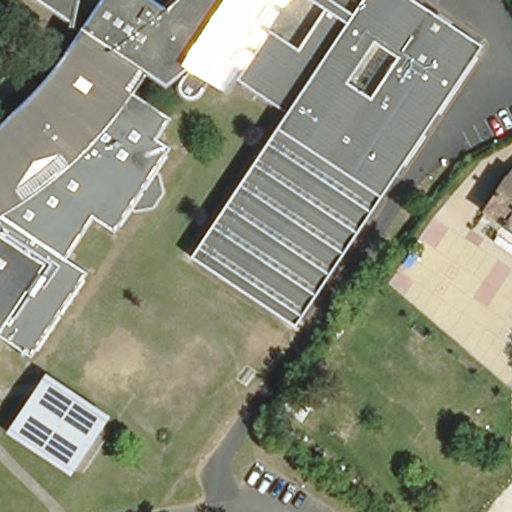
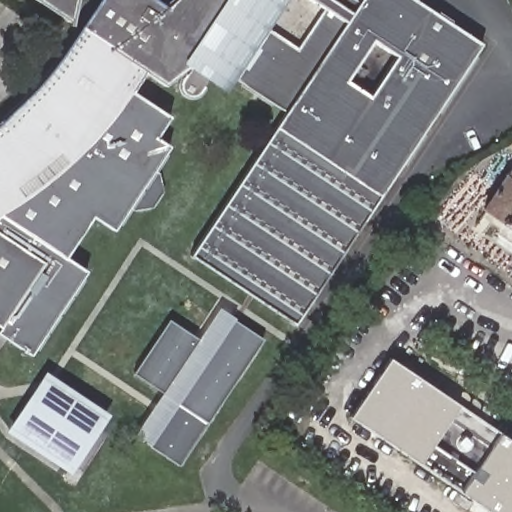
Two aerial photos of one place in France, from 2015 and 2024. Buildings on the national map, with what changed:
unchanged [(16,353),(2,344),(9,334),(0,328),(0,114),(4,110),(7,106),(10,102),(14,99),(18,95),(21,91),(25,88),(29,85),(33,81),(37,77),(40,74),(45,70),(49,67),(91,0),(149,0),(165,10),(174,0),(196,0),(350,0),(352,2),(354,0),(399,0),(472,49),(409,143),(387,176),(305,299),(290,322),(247,293),(199,261),(185,252),(252,151),(278,112),(227,80),(215,97),(198,85),(174,70),(147,99),(151,106),(166,116),(151,139),(158,144),(164,147),(148,170),(152,175),(156,192),(146,207),(129,210),(123,207),(114,221),(107,231),(101,227),(86,218),(60,257),(74,267),(80,271),(24,357),(16,353)]
unchanged [(69,0),(62,20),(31,0),(69,0)]
unchanged [(506,218),(487,204),(512,170),(512,240),(497,230),(506,218)]
new [(135,374),(170,321),(199,340),(222,311),(264,340),(184,462),(137,436),(165,394),(135,374)]
new [(512,512),(501,512),(356,414),(398,358),(512,436),(512,512)]
new [(70,475),(7,432),(47,372),(110,414),(70,475)]

